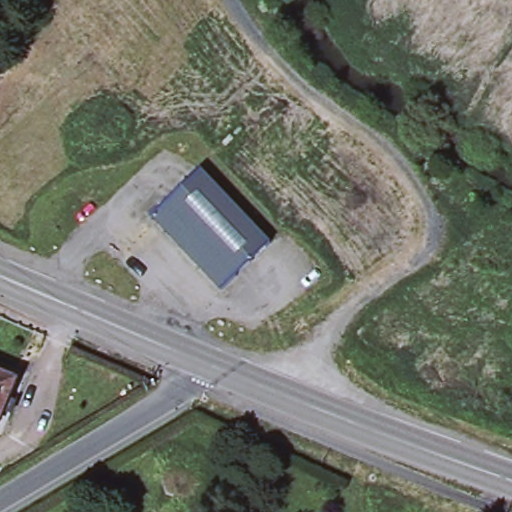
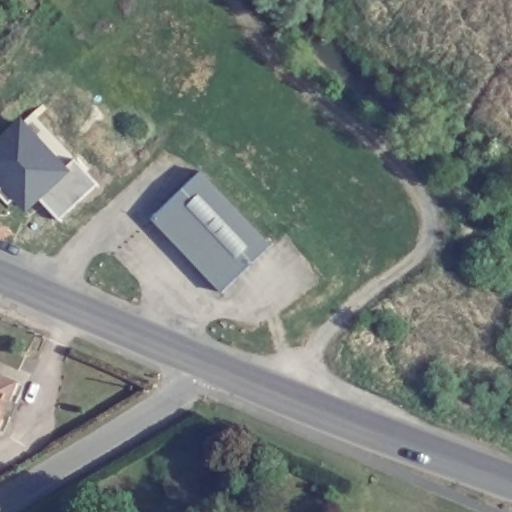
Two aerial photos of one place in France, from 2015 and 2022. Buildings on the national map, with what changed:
new [(30,112),(73,158),(60,170),(18,124),(30,112)]
new [(60,170),(73,158),(94,182),(56,217),(34,194),(23,205),(14,194),(5,202),(0,196),(0,185),(3,182),(0,179),(0,141),(18,124),(60,170)]
unchanged [(271,247),(221,293),(150,219),(201,172),(271,247)]
unchanged [(0,430),(0,380),(18,387),(0,430)]

